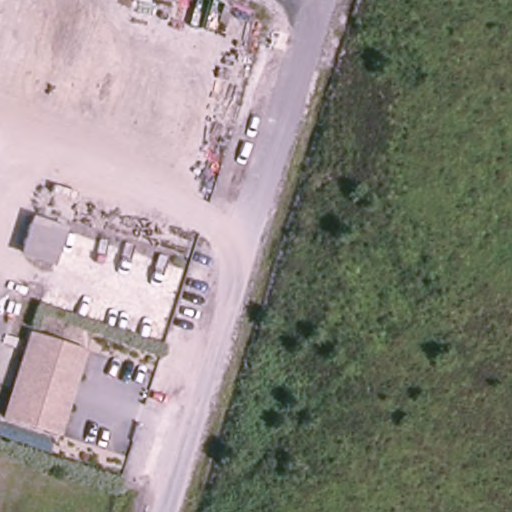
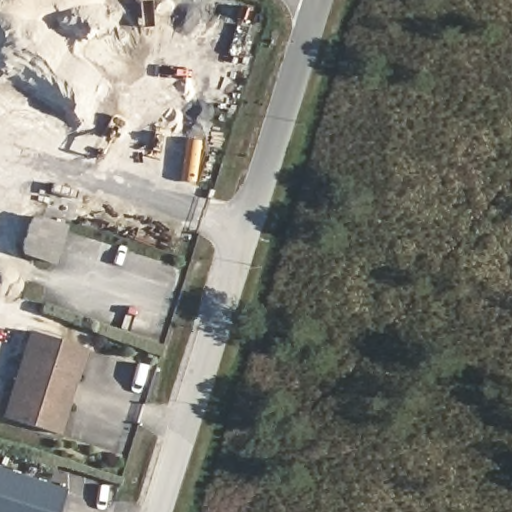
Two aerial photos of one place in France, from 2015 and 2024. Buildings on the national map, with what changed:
unchanged [(54,268),(17,257),(30,216),(69,227),(54,268)]
unchanged [(4,427),(29,338),(83,355),(73,391),(65,388),(61,402),(69,403),(57,441),(4,427)]
new [(0,468),(65,490),(58,512),(0,512),(0,468)]

